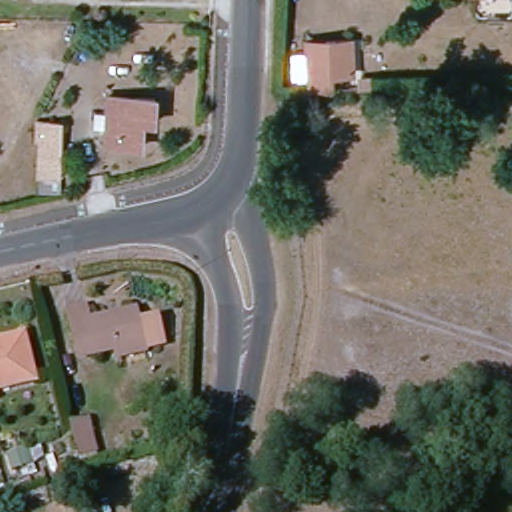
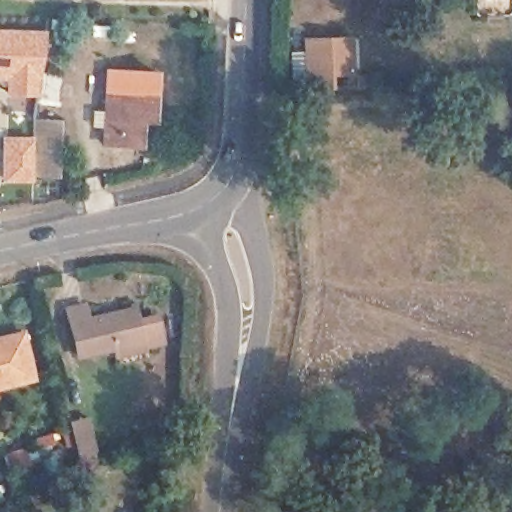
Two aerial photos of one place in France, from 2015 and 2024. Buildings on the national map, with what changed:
new [(46,29),(41,71),(61,75),(58,104),(5,96),(3,81),(0,81),(0,28),(46,29)]
unchanged [(309,92),(308,40),(352,40),(352,73),(334,73),(337,91),(309,92)]
new [(146,97),(114,97),(112,145),(101,147),(105,69),(157,71),(156,123),(145,121),(146,97)]
unchanged [(131,145),(112,145),(114,97),(146,97),(145,121),(131,121),(131,145)]
unchanged [(53,118),(54,174),(33,173),(34,119),(53,118)]
new [(33,173),(32,183),(0,182),(1,136),(33,136),(33,173)]
new [(98,175),(104,193),(110,192),(113,206),(84,213),(76,180),(98,175)]
unchanged [(138,363),(135,345),(101,354),(92,308),(109,303),(111,317),(157,305),(159,315),(177,311),(185,333),(164,338),(166,357),(138,363)]
unchanged [(22,328),(32,371),(0,378),(0,334),(22,328)]
unchanged [(90,420),(97,445),(76,447),(71,423),(90,420)]

